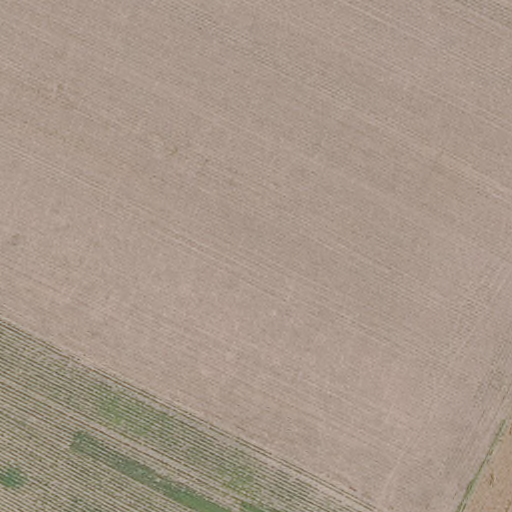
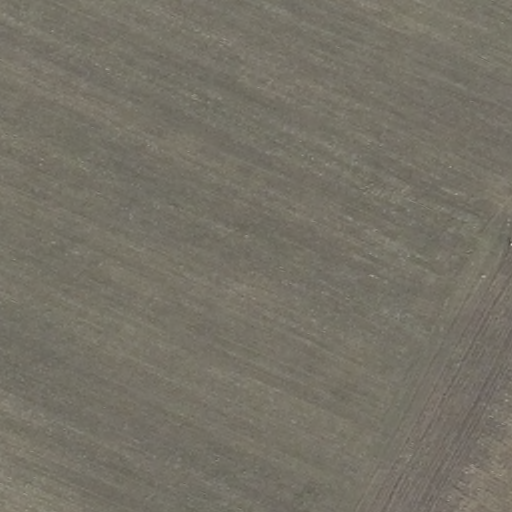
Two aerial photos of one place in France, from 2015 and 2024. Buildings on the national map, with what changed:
[]

